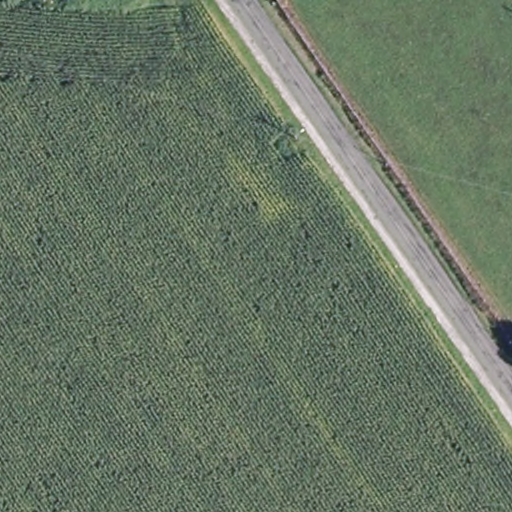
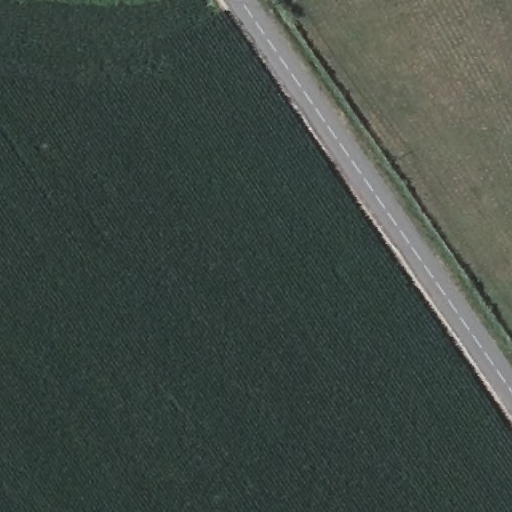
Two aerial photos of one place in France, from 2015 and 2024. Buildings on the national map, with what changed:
[]

